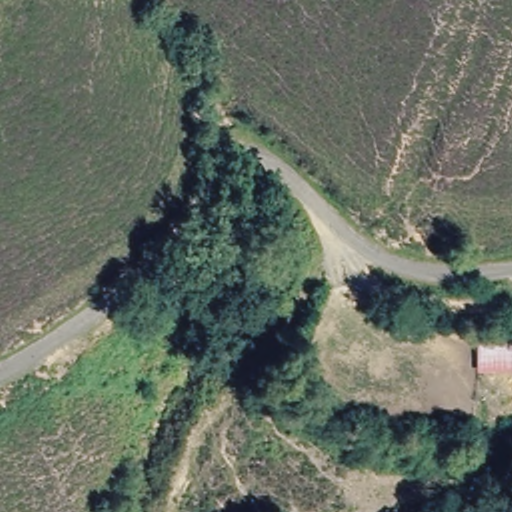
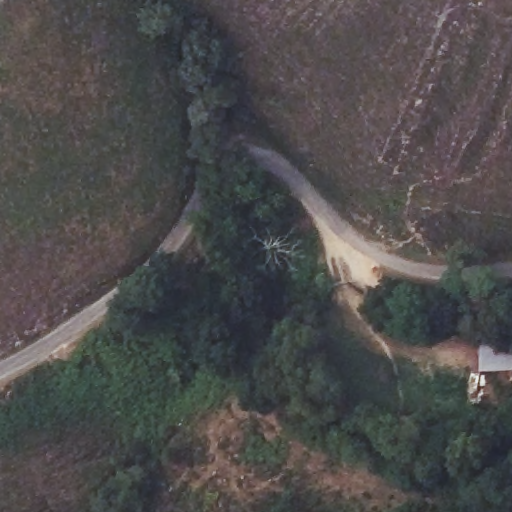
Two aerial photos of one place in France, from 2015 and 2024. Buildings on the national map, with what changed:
unchanged [(512,374),(480,373),(482,344),(512,345),(512,374)]

